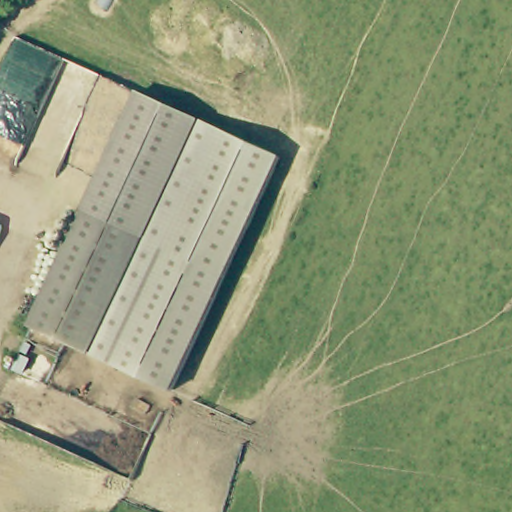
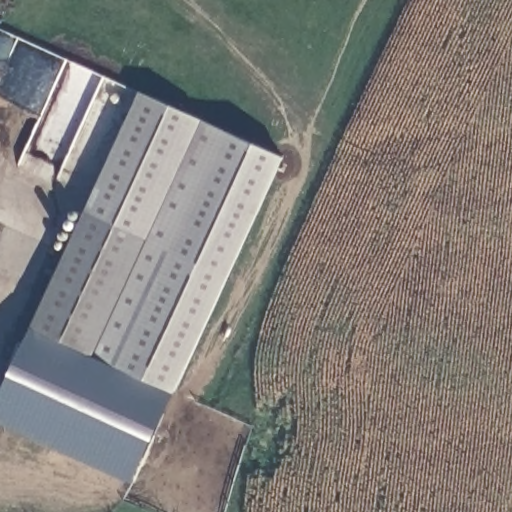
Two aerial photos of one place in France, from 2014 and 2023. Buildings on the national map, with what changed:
unchanged [(94,356),(30,326),(109,155),(137,92),(279,158),(263,192),(183,366),(171,392),(94,356)]
new [(0,420),(0,395),(30,326),(94,356),(159,386),(171,392),(132,481),(0,420)]

